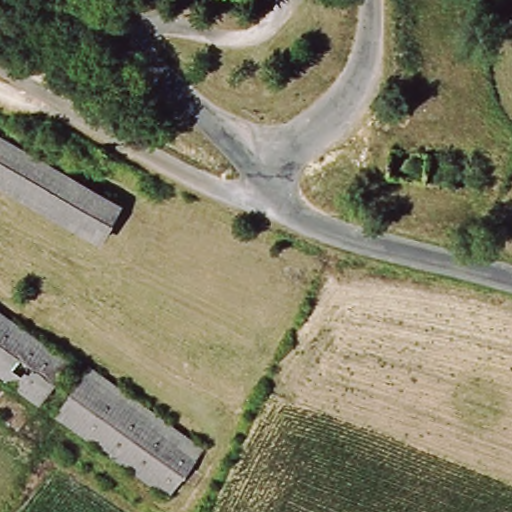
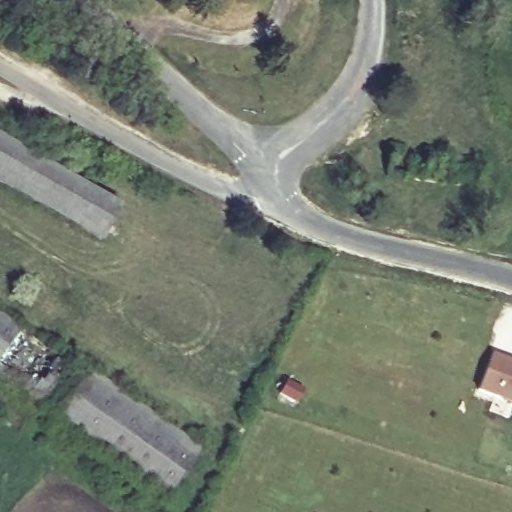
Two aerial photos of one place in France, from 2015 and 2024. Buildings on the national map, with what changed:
unchanged [(104,245),(0,176),(0,127),(126,211),(104,245)]
unchanged [(0,321),(67,372),(36,412),(0,384),(0,321)]
new [(490,354),(512,362),(512,405),(477,392),(490,354)]
unchanged [(82,381),(192,462),(161,503),(51,422),(82,381)]

